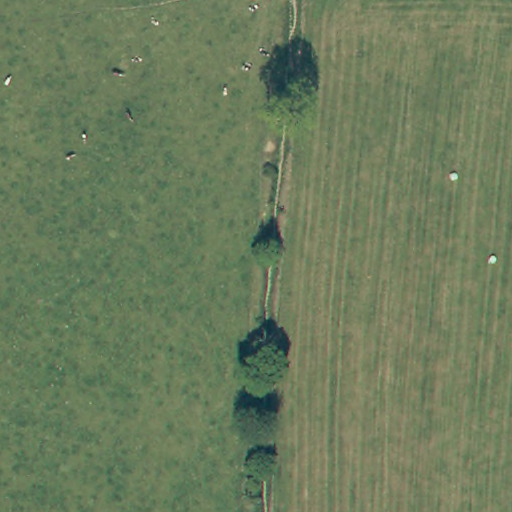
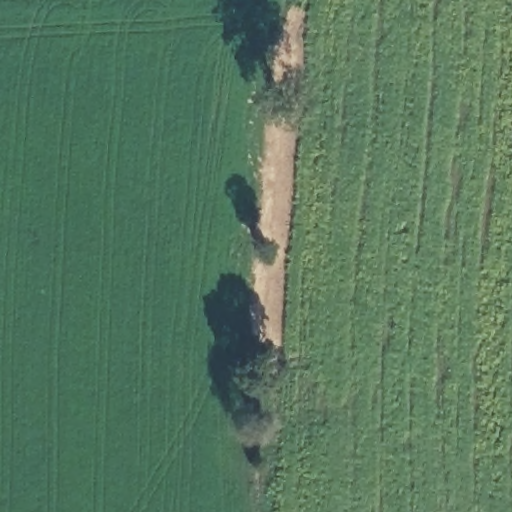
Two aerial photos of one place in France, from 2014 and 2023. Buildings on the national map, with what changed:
[]

